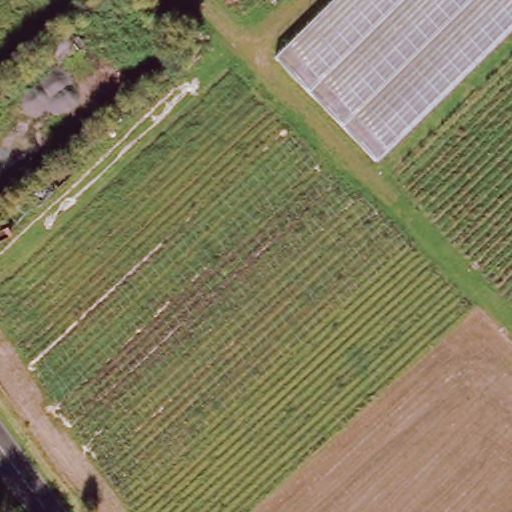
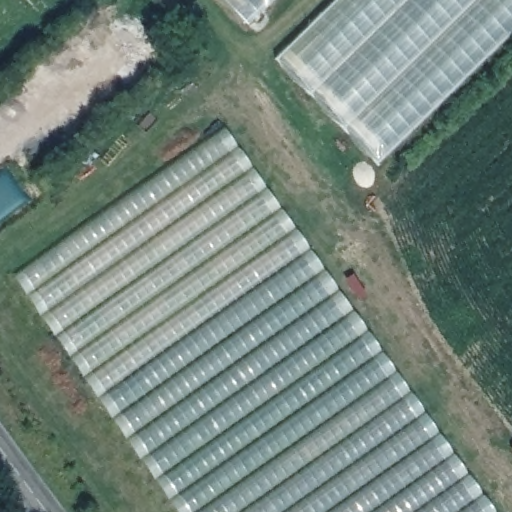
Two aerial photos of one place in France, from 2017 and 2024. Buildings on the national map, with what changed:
new [(254,38),(219,0),(296,0),(254,38)]
unchanged [(377,162),(275,58),(335,0),(512,0),(512,29),(377,162)]
new [(177,512),(12,278),(224,129),(493,512),(177,512)]

